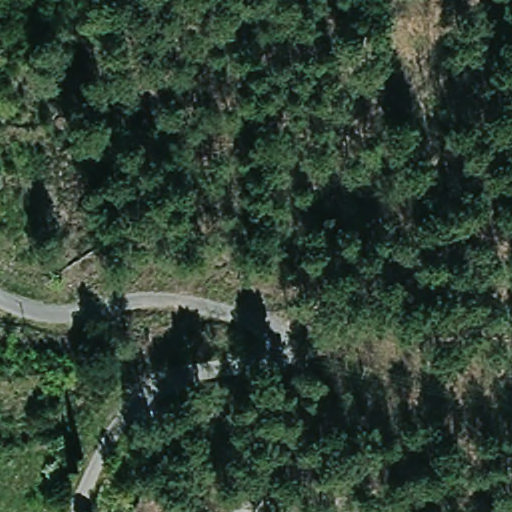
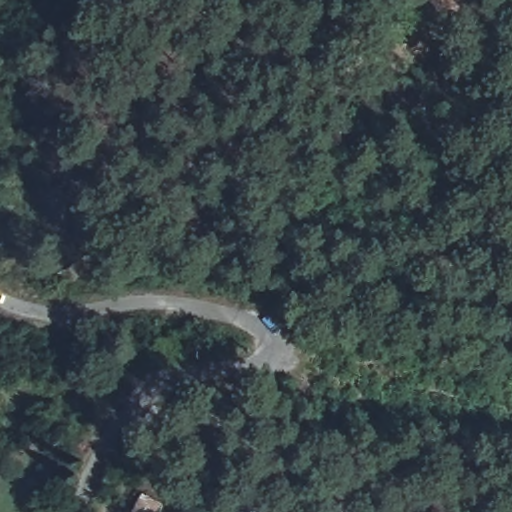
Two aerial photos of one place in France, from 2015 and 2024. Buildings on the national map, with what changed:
unchanged [(157,481),(138,474),(142,462),(162,468),(157,481)]

